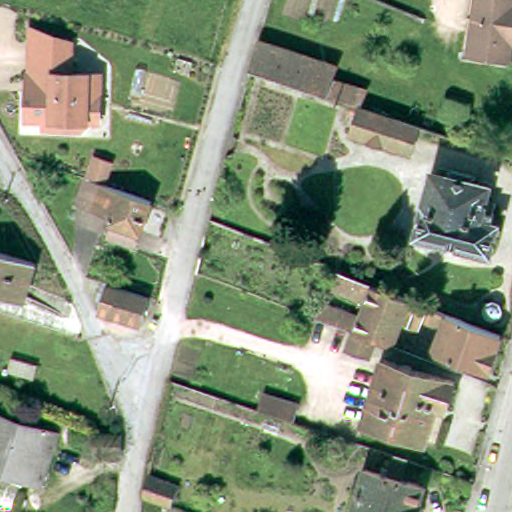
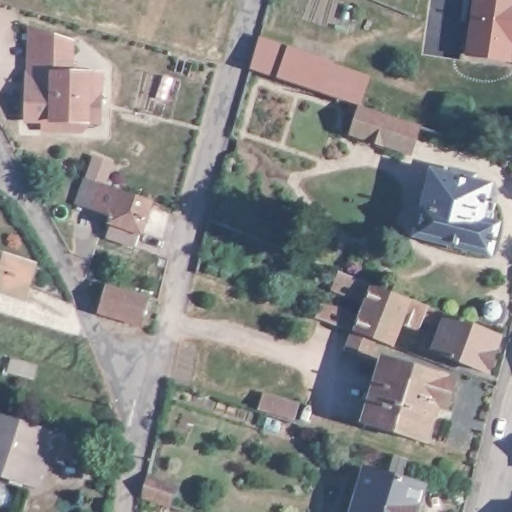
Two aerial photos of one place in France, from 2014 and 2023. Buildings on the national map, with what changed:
unchanged [(466,49),(470,29),(473,0),(512,0),(512,54),(495,52),(493,61),(465,56),(466,49)]
unchanged [(44,121),(26,121),(27,89),(33,89),(35,45),(28,44),(30,30),(57,38),(57,44),(75,44),(73,75),(102,76),(100,124),(86,123),(86,131),(69,131),(43,130),(44,121)]
unchanged [(248,73),(257,44),(327,65),(322,80),(365,94),(360,106),(355,105),(248,73)]
unchanged [(413,122),(405,149),(353,133),(359,115),(352,111),(355,105),(360,106),(413,122)]
unchanged [(103,186),(87,180),(93,166),(109,173),(103,186)]
unchanged [(412,233),(425,173),(440,177),(442,169),(466,175),(465,182),(480,186),(475,208),(486,211),(484,219),(489,220),(482,249),(412,233)]
unchanged [(103,240),(110,219),(75,206),(83,180),(103,186),(150,203),(132,250),(103,240)]
unchanged [(0,294),(0,252),(35,262),(21,301),(0,294)]
unchanged [(316,318),(321,304),(361,319),(370,293),(360,288),(362,281),(501,336),(487,372),(433,351),(442,327),(422,319),(419,327),(401,320),(391,346),(371,338),(316,318)]
unchanged [(139,325),(101,313),(110,285),(148,297),(139,325)]
unchanged [(455,382),(446,408),(439,406),(428,443),(368,424),(388,361),(455,382)]
unchanged [(278,396),(315,409),(311,418),(333,426),(331,431),(273,412),(278,396)]
unchanged [(36,485),(0,473),(0,419),(53,437),(36,485)]
unchanged [(98,429),(121,429),(121,456),(98,456),(98,429)]
unchanged [(399,479),(421,484),(414,512),(353,512),(364,470),(385,475),(391,453),(405,458),(399,479)]
unchanged [(180,482),(172,500),(146,491),(150,471),(180,482)]

